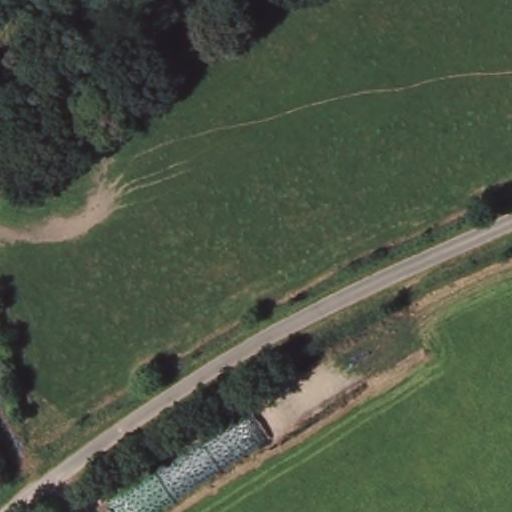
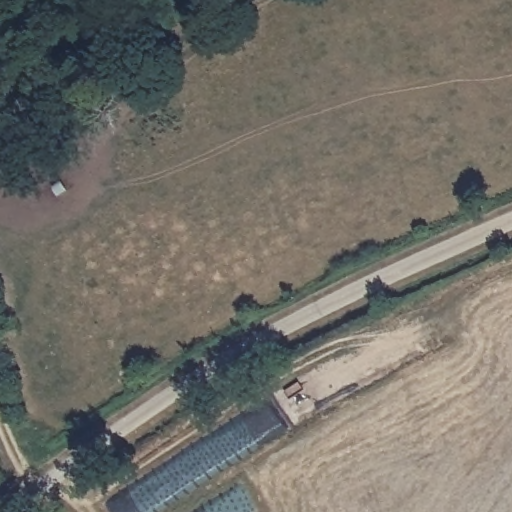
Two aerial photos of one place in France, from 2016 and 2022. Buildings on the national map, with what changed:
[]

